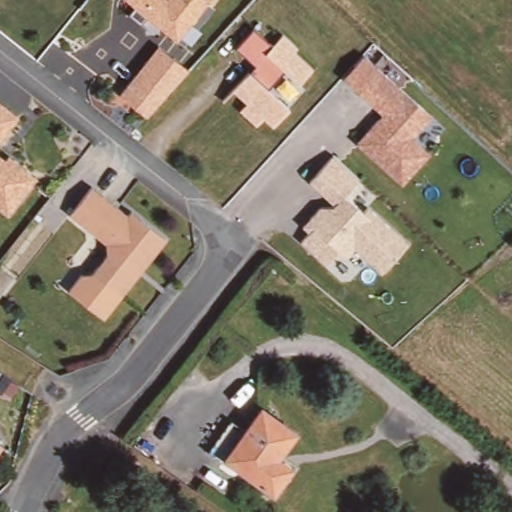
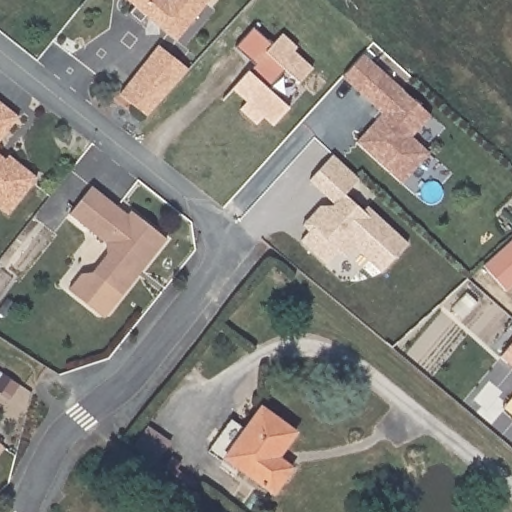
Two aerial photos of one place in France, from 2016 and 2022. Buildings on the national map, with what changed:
unchanged [(140,26),(128,16),(135,7),(125,0),(166,0),(166,1),(167,0),(211,0),(176,42),(151,22),(145,30),(140,26)]
unchanged [(285,72),(268,91),(289,110),(272,127),(263,119),(256,126),(240,111),(246,104),(232,90),(254,66),(235,49),(253,29),(272,46),(282,36),(296,49),(293,52),(312,70),(299,85),(285,72)]
unchanged [(120,94),(163,47),(189,71),(146,117),(120,94)]
unchanged [(357,143),(381,113),(342,79),(363,55),(428,115),(410,136),(428,155),(402,183),(357,143)]
unchanged [(9,132),(0,143),(0,104),(19,120),(9,132)]
unchanged [(353,248),(345,257),(337,250),(326,265),(300,241),(306,232),(302,227),(321,202),(329,209),(335,202),(311,181),(331,156),(358,179),(345,195),(362,211),(365,206),(407,243),(381,272),(353,248)]
unchanged [(9,158),(36,181),(7,217),(0,211),(0,158),(5,162),(9,158)]
unchanged [(119,301),(90,277),(105,258),(105,256),(105,247),(69,218),(91,191),(126,220),(130,216),(135,221),(165,245),(141,274),(134,282),(119,301)]
new [(506,291),(483,267),(512,240),(512,286),(506,291)]
new [(500,357),(512,343),(512,366),(500,357)]
unchanged [(291,480),(278,497),(230,462),(226,467),(212,457),(235,424),(250,434),(265,412),(300,436),(282,462),(296,472),(291,480)]
unchanged [(0,454),(0,449),(2,451),(0,454)]

